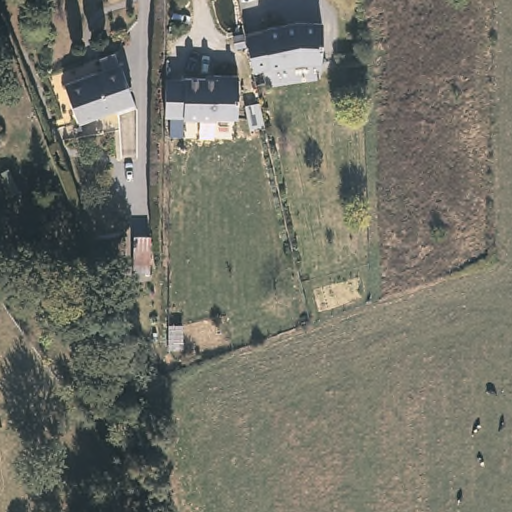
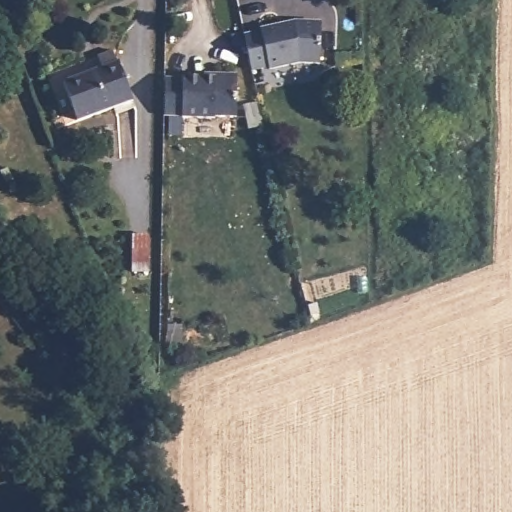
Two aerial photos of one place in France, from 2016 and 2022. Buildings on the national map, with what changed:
unchanged [(260,30),(260,27),(282,22),(282,25),(293,22),(297,19),(322,21),(319,61),(299,59),(269,66),(269,64),(251,68),(244,34),(260,30)]
unchanged [(117,63),(119,63),(132,100),(77,121),(64,82),(101,69),(98,56),(113,51),(117,63)]
unchanged [(182,79),(182,78),(212,78),(212,74),(234,74),(234,116),(213,116),(213,118),(180,118),(180,116),(163,116),(162,116),(163,79),(182,79)]
unchanged [(149,271),(131,271),(132,235),(149,235),(149,271)]

